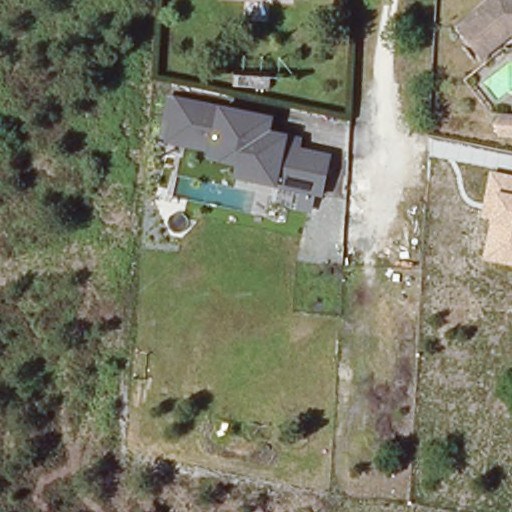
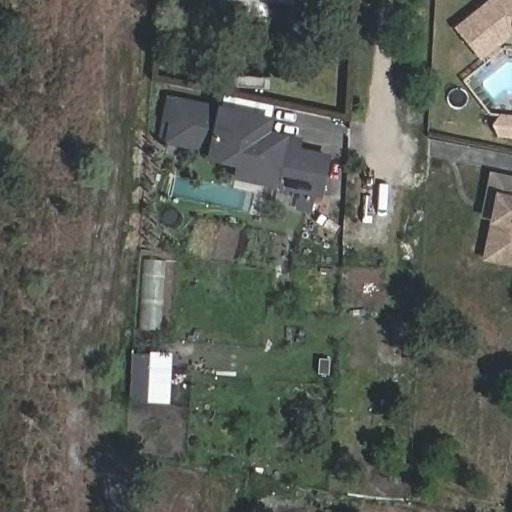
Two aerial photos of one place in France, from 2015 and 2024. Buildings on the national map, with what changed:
unchanged [(492,0),(512,0),(512,41),(485,63),(459,28),(492,0)]
unchanged [(270,130),(288,133),(290,135),(303,136),(300,147),(330,153),(323,194),(315,193),(312,210),(294,208),(297,193),(278,190),(277,188),(232,180),(235,167),(206,162),(208,153),(205,151),(160,143),(168,96),(217,105),(220,105),(273,115),(270,130)]
unchanged [(512,176),(512,266),(483,261),(491,221),(484,219),(490,172),(512,176)]
new [(132,352),(170,352),(169,403),(131,401),(132,352)]

